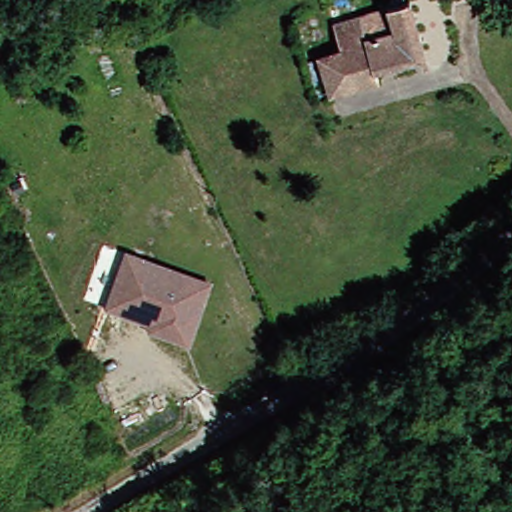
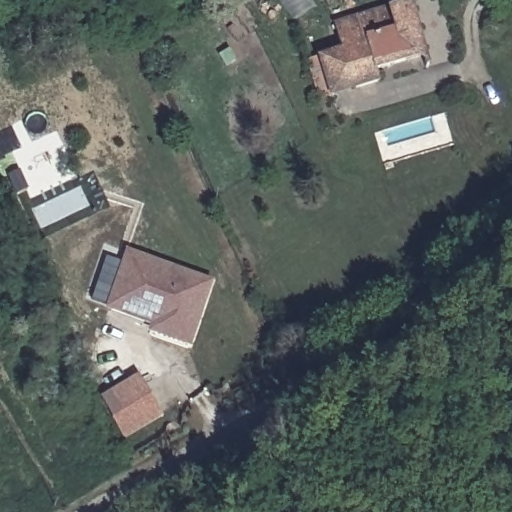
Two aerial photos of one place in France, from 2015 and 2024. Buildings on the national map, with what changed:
unchanged [(429,58),(383,75),(386,84),(360,94),(346,56),(338,32),(392,11),(390,3),(401,0),(404,0),(407,6),(410,5),(429,58)]
unchanged [(323,110),(310,81),(306,70),(316,66),(346,56),(360,94),(323,110)]
unchanged [(186,344),(150,330),(153,322),(108,304),(120,271),(128,253),(209,285),(186,344)]
new [(139,373),(164,416),(125,438),(100,395),(139,373)]

